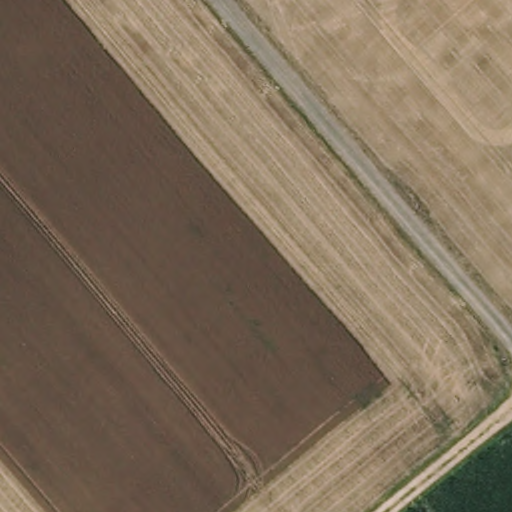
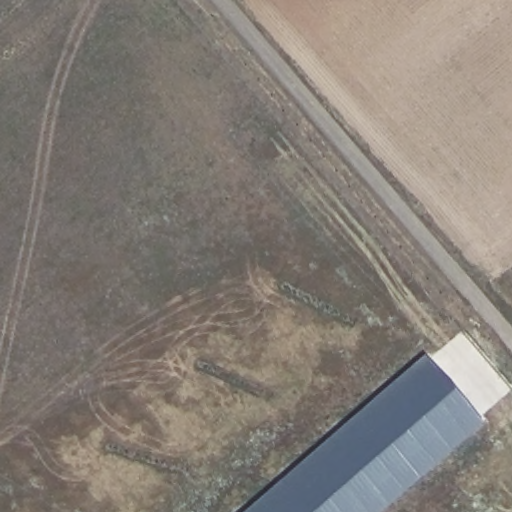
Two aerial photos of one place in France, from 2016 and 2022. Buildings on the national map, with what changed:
new [(423,357),(482,425),(381,512),(245,512),(423,357)]

